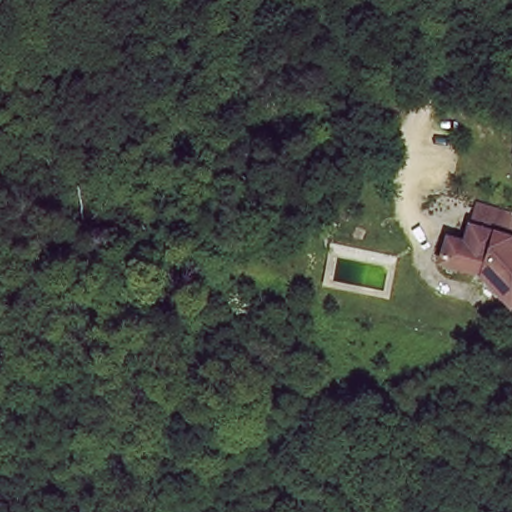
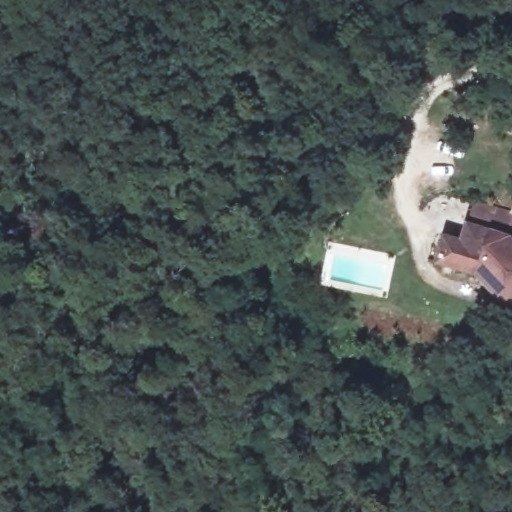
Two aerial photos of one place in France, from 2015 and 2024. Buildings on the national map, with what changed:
unchanged [(430,265),(440,231),(459,235),(465,217),(471,197),(504,207),(512,218),(512,298),(492,313),(470,282),(430,265)]

